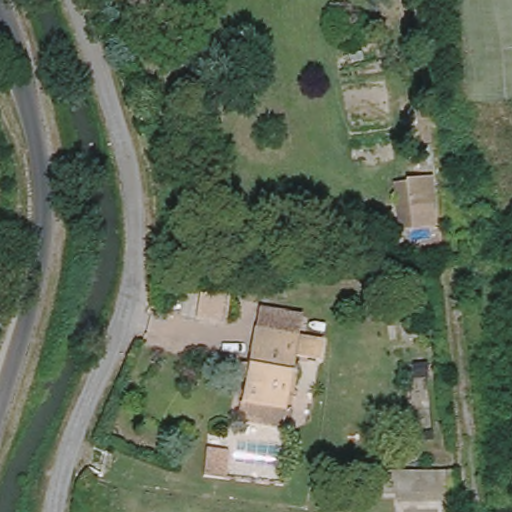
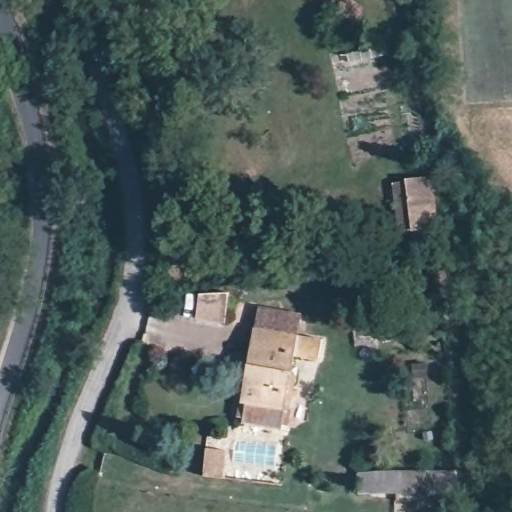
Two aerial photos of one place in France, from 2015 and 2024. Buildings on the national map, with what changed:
unchanged [(413,232),(396,231),(389,182),(430,176),(436,228),(413,232)]
unchanged [(205,285),(234,292),(228,322),(199,315),(205,285)]
unchanged [(262,303),(302,311),(300,337),(258,331),(262,303)]
unchanged [(264,427),(267,411),(245,407),(258,331),(300,337),(287,431),(264,427)]
unchanged [(229,441),(231,475),(207,477),(205,444),(229,441)]
unchanged [(395,498),(394,474),(454,474),(456,498),(395,498)]

